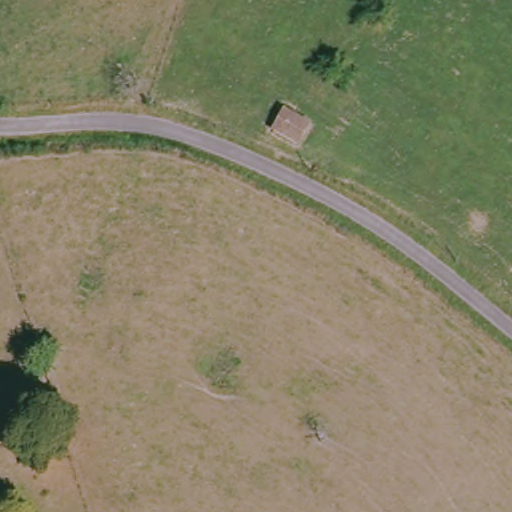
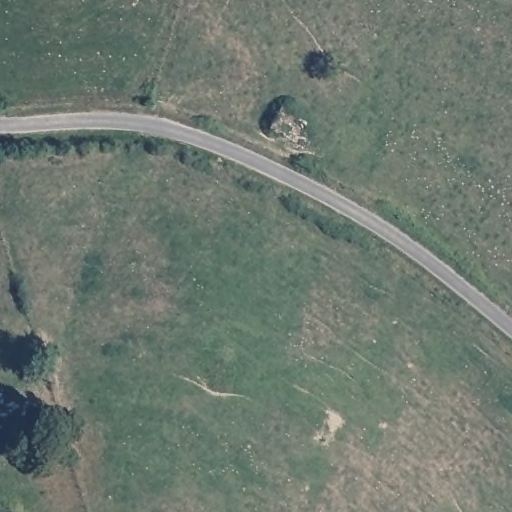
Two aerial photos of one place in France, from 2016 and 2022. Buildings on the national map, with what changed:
unchanged [(281,109),(305,122),(295,142),(271,129),(281,109)]

